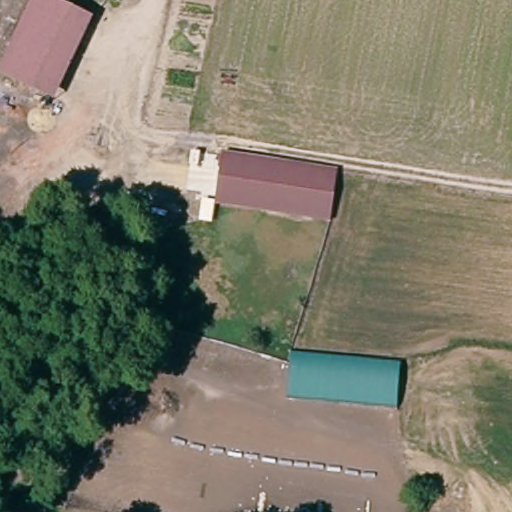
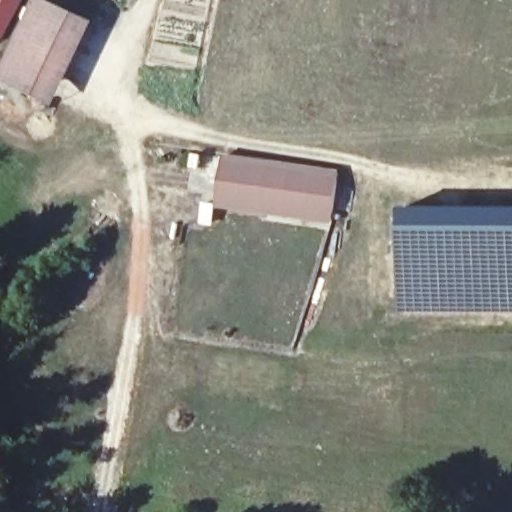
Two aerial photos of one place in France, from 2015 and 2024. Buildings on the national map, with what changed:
new [(0,0),(17,0),(0,34),(0,0)]
unchanged [(59,102),(34,95),(1,84),(32,0),(43,0),(46,1),(90,16),(59,102)]
unchanged [(223,152),(340,169),(334,220),(217,202),(223,152)]
new [(398,210),(512,209),(512,312),(399,312),(398,210)]
demolished [(289,347),(402,356),(398,406),(286,392),(289,347)]

